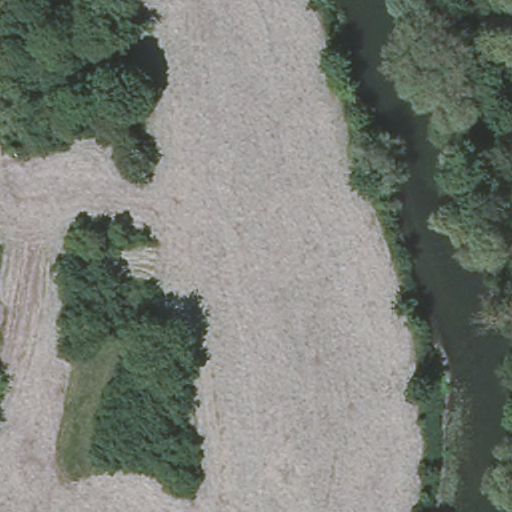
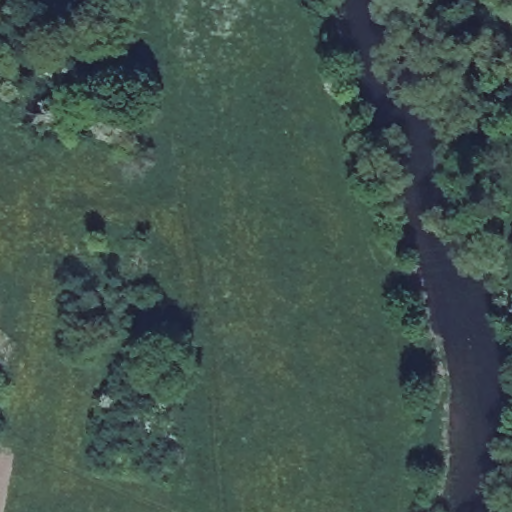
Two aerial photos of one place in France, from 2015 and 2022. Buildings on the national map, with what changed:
[]

